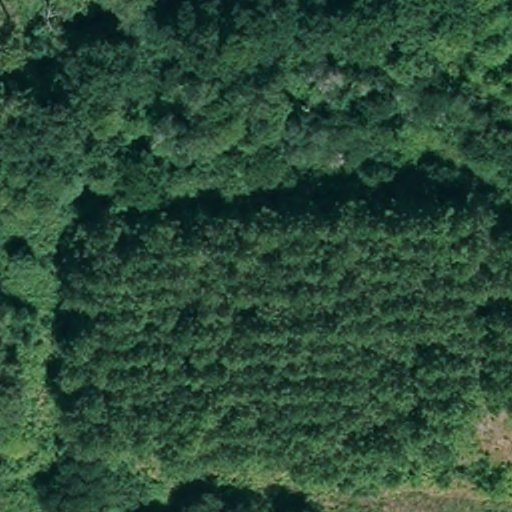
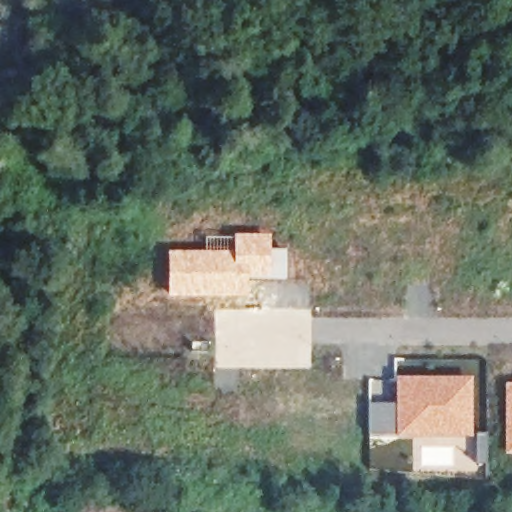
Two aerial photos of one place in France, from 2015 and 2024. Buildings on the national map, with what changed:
new [(166,249),(204,249),(204,236),(270,233),(270,248),(285,248),(285,279),(249,278),(249,295),(166,297),(166,249)]
new [(394,376),(471,375),(471,436),(394,437),(393,400),(394,376)]
new [(368,379),(385,381),(384,400),(393,400),(394,437),(368,436),(368,379)]
new [(503,381),(512,381),(512,454),(503,454),(503,381)]
unchanged [(507,486),(506,460),(512,460),(512,486),(507,486)]

